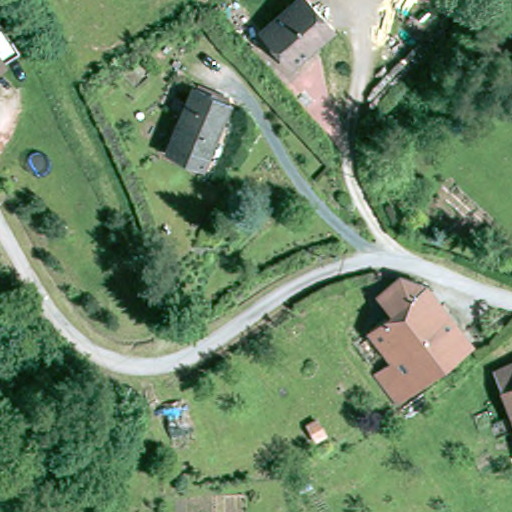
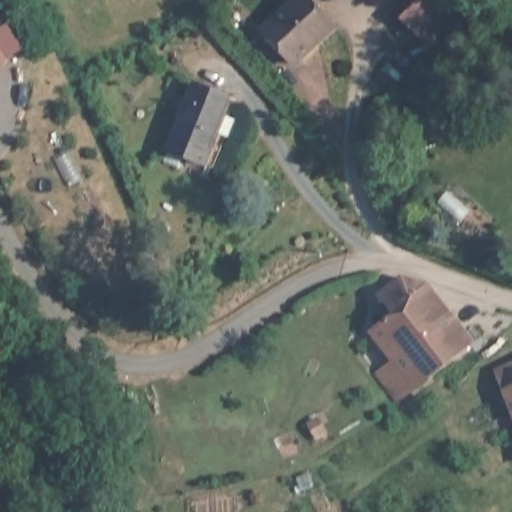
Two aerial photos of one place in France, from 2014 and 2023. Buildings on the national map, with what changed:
unchanged [(290,67),(264,30),(305,0),(313,0),(337,32),(290,67)]
unchanged [(0,71),(0,19),(20,61),(0,71)]
unchanged [(194,84),(230,95),(208,162),(170,151),(194,84)]
unchanged [(375,371),(390,363),(366,328),(391,311),(377,292),(405,275),(423,295),(436,288),(475,348),(397,403),(375,371)]
unchanged [(503,385),(497,370),(512,364),(512,410),(503,385)]

